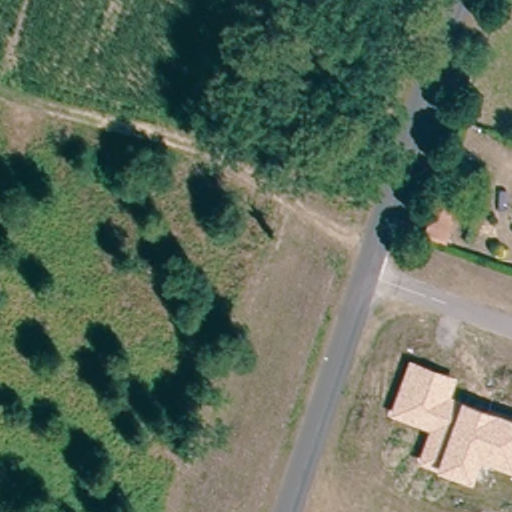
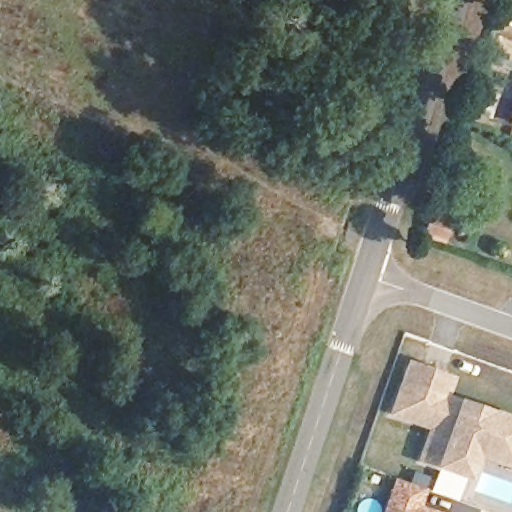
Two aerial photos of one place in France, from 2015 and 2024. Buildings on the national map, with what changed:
new [(510,124),(512,118),(512,124),(510,124)]
unchanged [(437,206),(456,213),(444,246),(424,240),(437,206)]
unchanged [(456,377),(450,396),(512,419),(512,470),(479,458),(471,482),(417,461),(428,430),(388,413),(408,359),(456,377)]
new [(417,511),(420,512),(386,512),(390,500),(398,479),(425,488),(417,511)]
new [(432,512),(424,512),(425,510),(432,512)]

